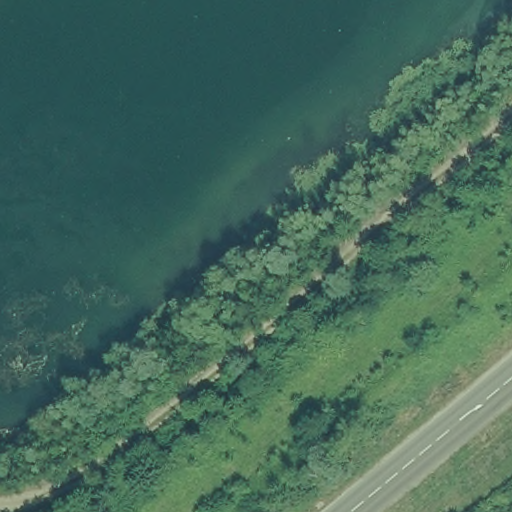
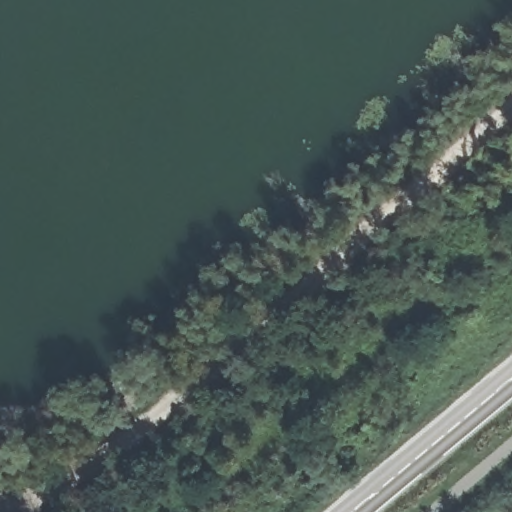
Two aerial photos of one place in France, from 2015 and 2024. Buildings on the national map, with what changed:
[]

